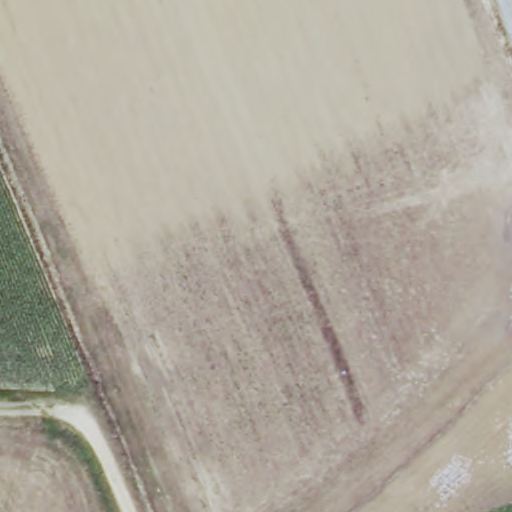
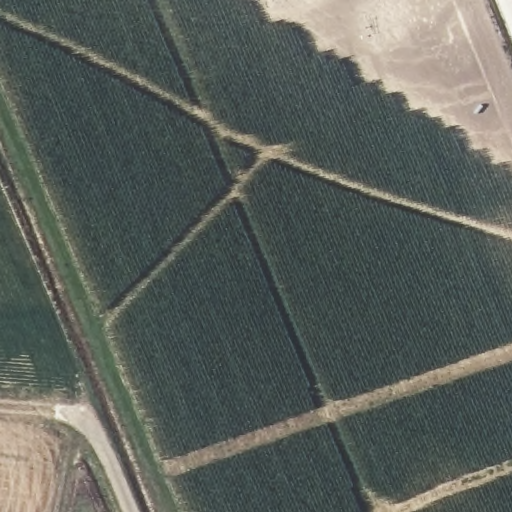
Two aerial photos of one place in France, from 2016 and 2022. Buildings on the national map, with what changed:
unchanged [(512,0),(512,39),(496,0),(512,0)]

